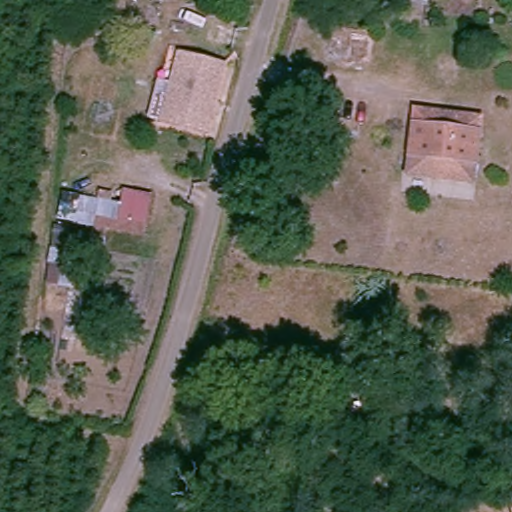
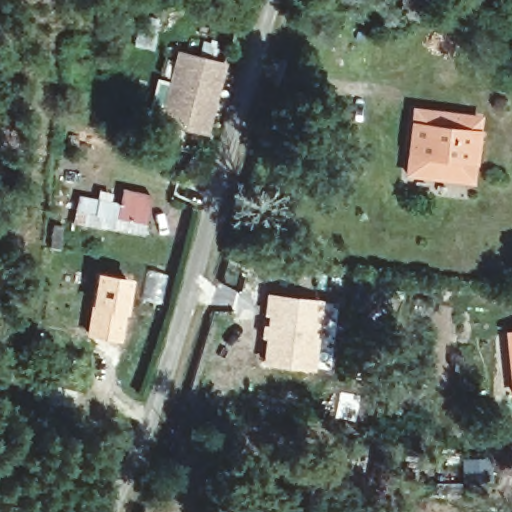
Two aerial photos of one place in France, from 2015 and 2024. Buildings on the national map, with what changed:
unchanged [(178,59),(194,65),(221,74),(209,114),(200,142),(156,126),(178,59)]
unchanged [(427,190),(405,185),(405,170),(414,120),(416,106),(439,109),(481,115),(471,179),(469,187),(468,195),(427,190)]
unchanged [(142,238),(55,225),(62,190),(78,192),(77,199),(96,201),(97,196),(108,198),(108,205),(119,207),(119,194),(149,199),(142,238)]
unchanged [(65,301),(79,302),(76,322),(51,320),(55,287),(43,287),(48,252),(51,229),(61,230),(58,252),(71,256),(65,301)]
new [(88,317),(92,318),(89,309),(95,272),(130,277),(118,342),(85,336),(88,317)]
new [(220,281),(239,292),(236,310),(209,305),(220,281)]
new [(265,292),(324,300),(316,369),(315,368),(314,372),(259,365),(265,292)]
new [(512,329),(512,400),(504,330),(512,329)]
unchanged [(42,362),(43,345),(68,348),(66,367),(42,362)]
new [(340,391),(362,395),(356,422),(335,418),(340,391)]

